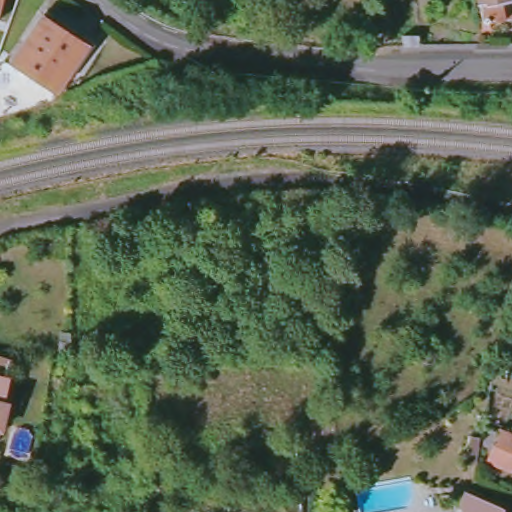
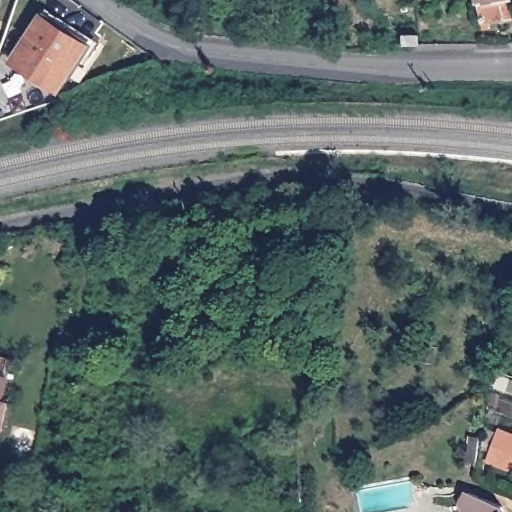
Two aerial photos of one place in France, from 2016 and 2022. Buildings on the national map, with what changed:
unchanged [(0,7),(0,0),(2,0),(0,7)]
unchanged [(491,23),(492,30),(485,31),(479,0),(512,0),(512,19),(491,23)]
unchanged [(12,62),(45,12),(91,45),(56,92),(12,62)]
unchanged [(420,47),(404,46),(404,36),(419,37),(420,47)]
unchanged [(7,377),(2,400),(8,402),(2,428),(0,428),(0,376),(7,377)]
unchanged [(512,475),(482,463),(495,423),(512,428),(512,473),(512,475)]
unchanged [(508,512),(468,512),(465,505),(474,493),(480,496),(507,508),(508,512)]

